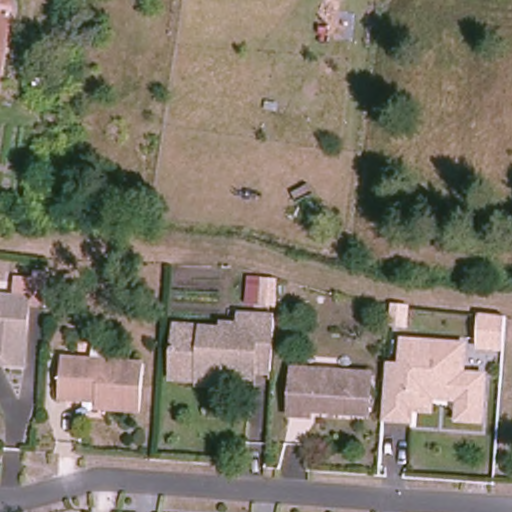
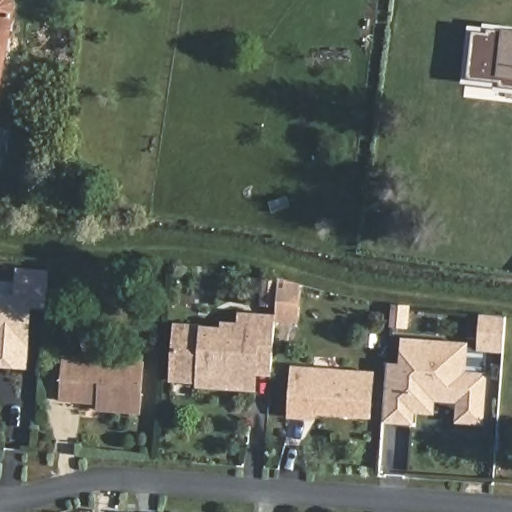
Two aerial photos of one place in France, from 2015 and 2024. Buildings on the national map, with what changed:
unchanged [(11,6),(0,73),(0,0),(9,0),(11,6)]
new [(487,32),(488,27),(512,30),(512,88),(500,87),(500,82),(468,80),(473,30),(487,32)]
unchanged [(30,293),(26,360),(0,358),(0,291),(30,293)]
unchanged [(506,353),(475,352),(477,312),(507,314),(506,353)]
unchanged [(252,375),(196,370),(195,382),(169,380),(171,328),(219,332),(220,327),(235,328),(236,317),(255,319),(252,375)]
unchanged [(386,363),(399,363),(401,340),(468,343),(467,372),(487,372),(484,425),(456,423),(456,404),(438,403),(436,413),(416,414),(415,424),(384,422),(386,363)]
unchanged [(131,409),(99,407),(99,399),(52,396),(54,355),(134,360),(131,409)]
unchanged [(366,412),(350,411),(348,406),(307,403),(306,414),(286,411),(289,366),(310,367),(310,372),(333,373),(334,370),(367,372),(366,412)]

